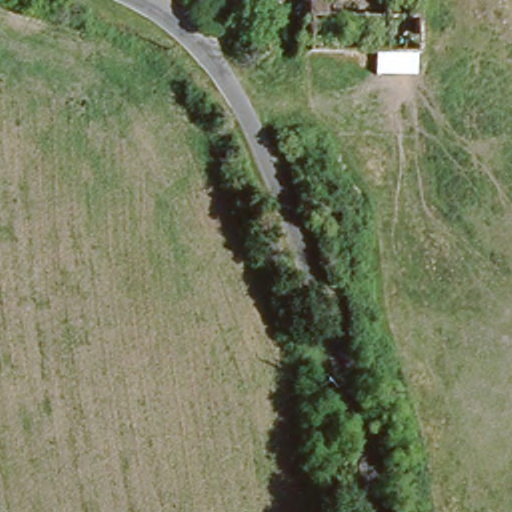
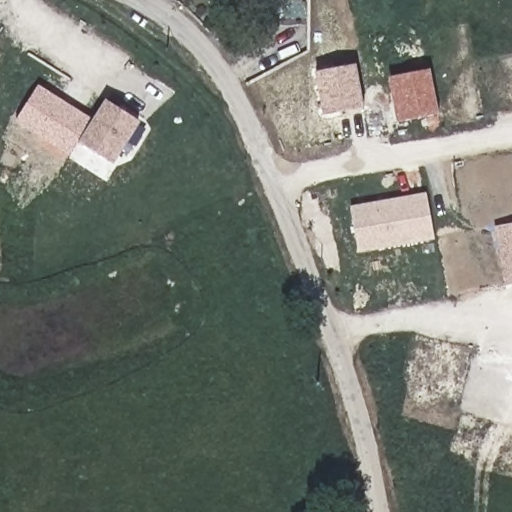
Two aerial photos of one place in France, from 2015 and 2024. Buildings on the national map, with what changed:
demolished [(304,50),(304,0),(419,0),(418,53),(304,50)]
new [(322,117),(315,72),(356,64),(364,109),(322,117)]
new [(397,122),(388,78),(429,70),(439,115),(397,122)]
new [(79,142),(70,157),(14,122),(38,85),(93,120),(105,100),(141,122),(114,165),(79,142)]
new [(350,206),(427,192),(434,239),(359,253),(350,206)]
new [(512,224),(512,286),(506,287),(494,227),(512,224)]

